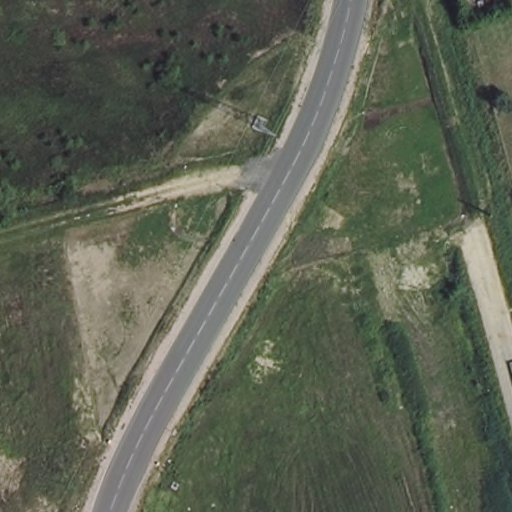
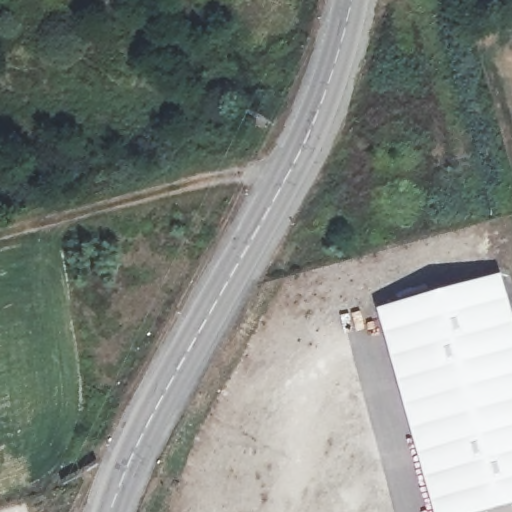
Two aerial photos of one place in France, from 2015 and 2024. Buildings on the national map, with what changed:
new [(512,323),(512,503),(483,512),(430,512),(377,308),(498,274),(512,323)]

